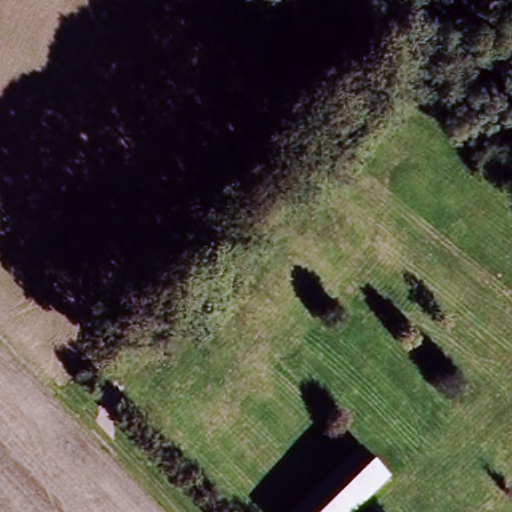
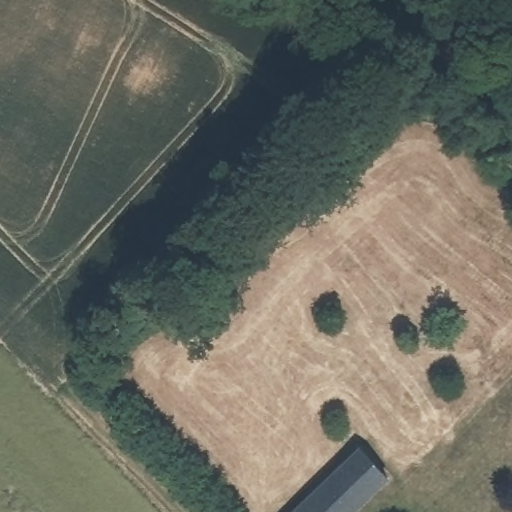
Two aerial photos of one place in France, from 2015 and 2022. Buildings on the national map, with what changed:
unchanged [(390,479),(355,512),(292,512),(360,448),(390,479)]

